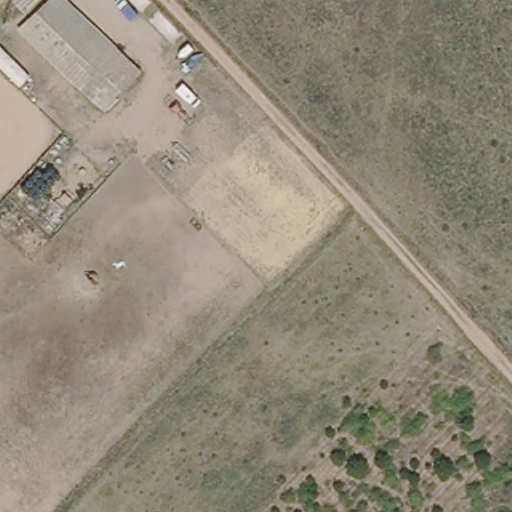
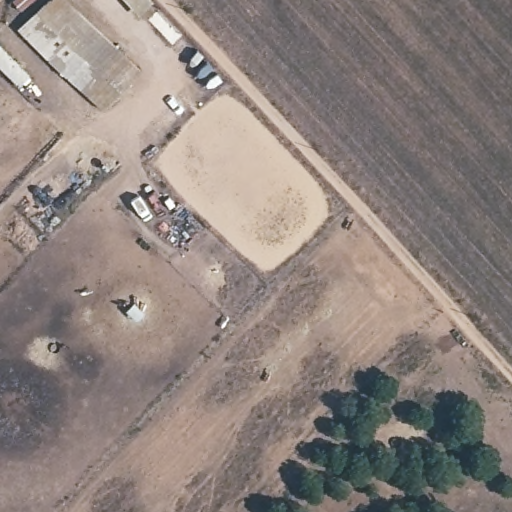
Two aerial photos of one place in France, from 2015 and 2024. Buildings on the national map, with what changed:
unchanged [(52,0),(75,0),(146,71),(106,109),(23,30),(52,0)]

